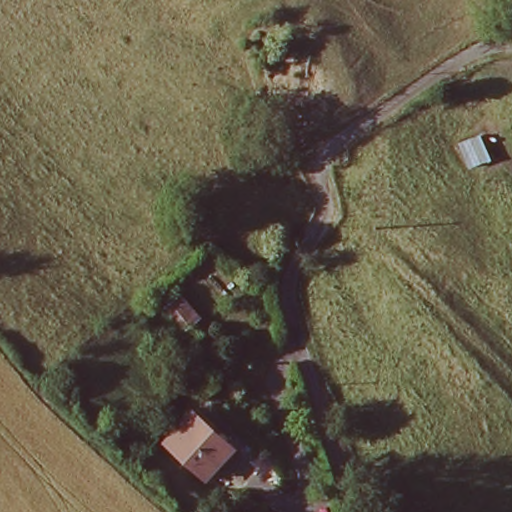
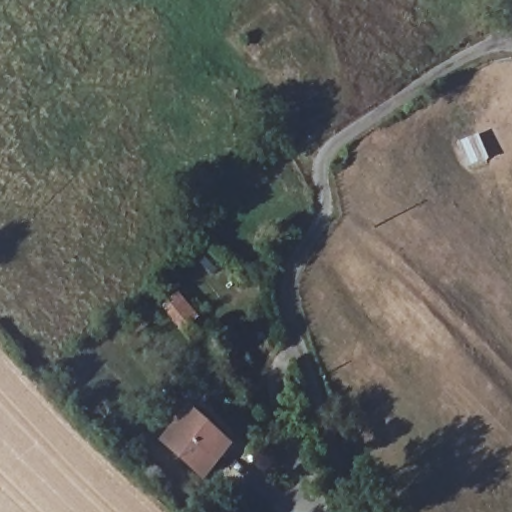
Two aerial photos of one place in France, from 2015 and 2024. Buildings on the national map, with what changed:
unchanged [(269,243),(277,257),(256,268),(249,257),(263,247),(269,243)]
unchanged [(189,411),(228,447),(198,478),(158,438),(189,411)]

